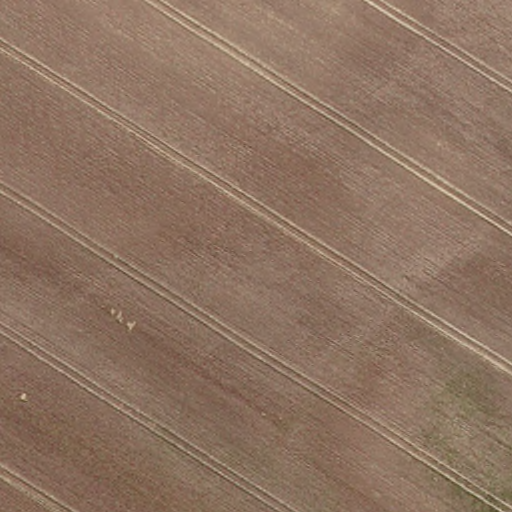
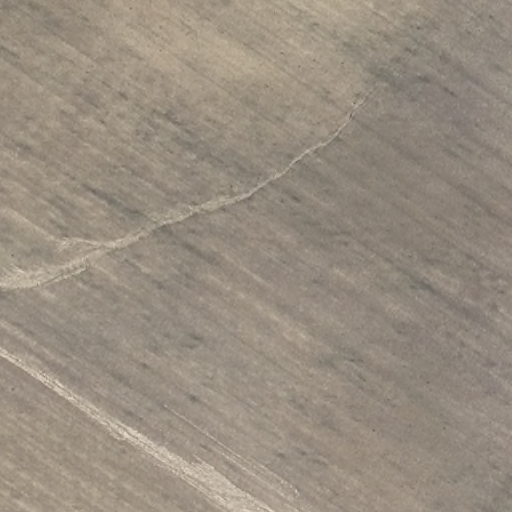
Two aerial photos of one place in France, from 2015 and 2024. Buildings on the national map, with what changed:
[]

